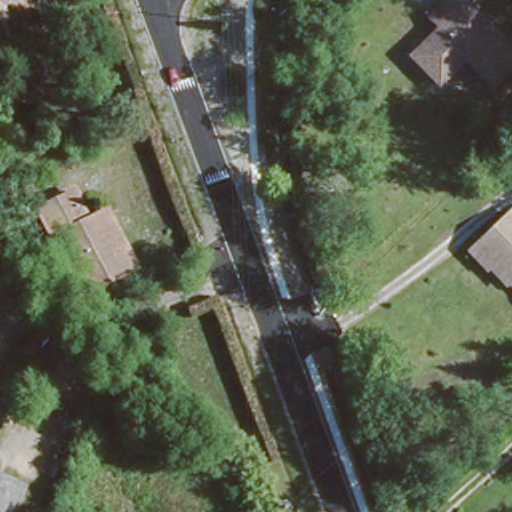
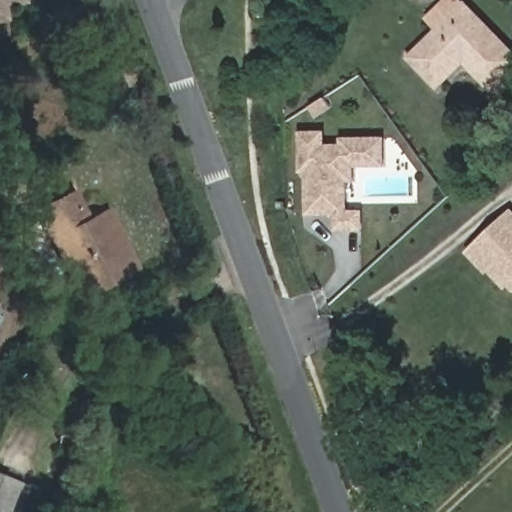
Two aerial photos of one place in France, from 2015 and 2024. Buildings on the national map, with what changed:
unchanged [(1,3),(3,19),(0,19),(0,0),(20,0),(20,1),(1,3)]
unchanged [(512,51),(512,68),(494,85),(465,53),(457,61),(459,66),(440,84),(413,56),(467,3),(512,51)]
new [(325,144),(340,143),(340,136),(385,135),(386,166),(355,166),(355,181),(347,181),(348,209),(363,209),(363,230),(335,231),(334,214),(305,215),(305,171),(300,171),(299,130),(325,130),(325,144)]
unchanged [(58,244),(40,211),(74,191),(89,220),(105,210),(136,270),(98,291),(87,297),(58,244)]
unchanged [(504,280),(489,262),(486,265),(469,246),(512,207),(512,208),(512,273),(504,280)]
unchanged [(5,512),(0,512),(0,474),(16,480),(5,512)]
unchanged [(18,512),(5,512),(16,480),(28,484),(18,512)]

